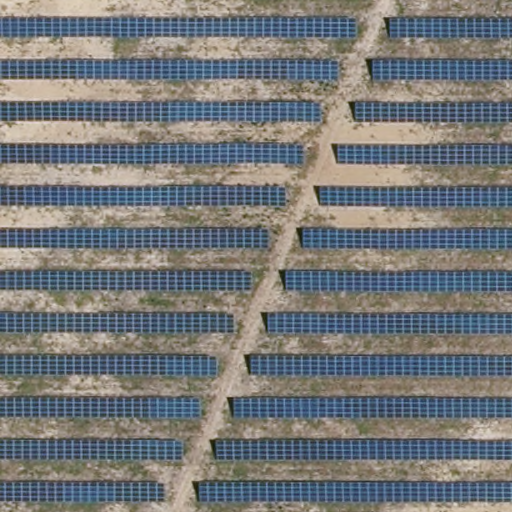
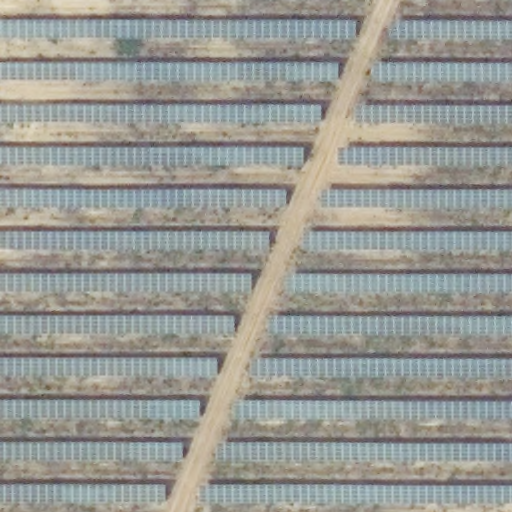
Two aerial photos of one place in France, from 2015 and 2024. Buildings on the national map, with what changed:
[]

